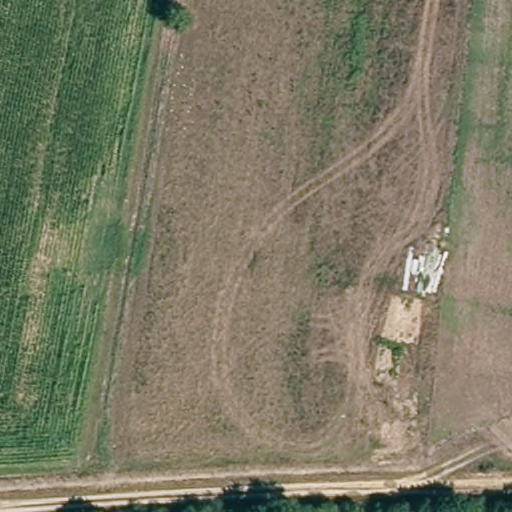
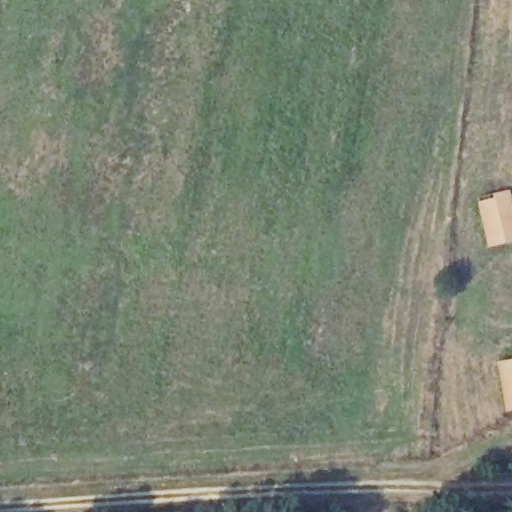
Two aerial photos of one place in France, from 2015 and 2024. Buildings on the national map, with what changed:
new [(512,242),(489,248),(477,198),(510,191),(512,199),(512,242)]
new [(497,363),(512,360),(512,411),(506,413),(497,363)]

